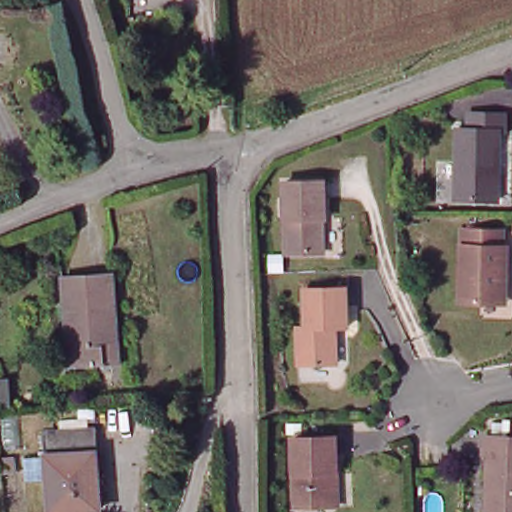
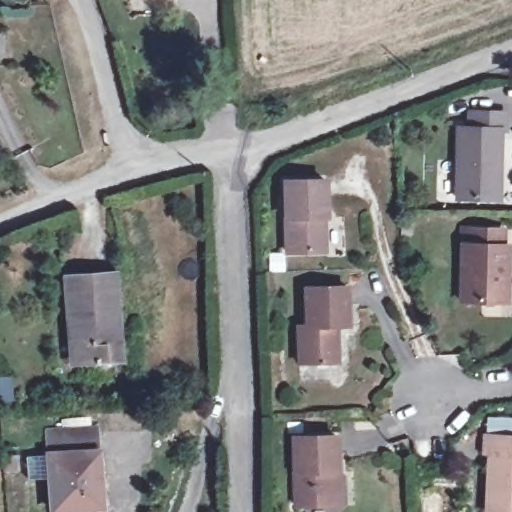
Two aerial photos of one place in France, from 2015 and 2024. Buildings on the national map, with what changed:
unchanged [(162,0),(162,7),(119,6),(119,0),(162,0)]
unchanged [(489,200),(455,199),(458,131),(468,131),(470,112),(505,114),(506,133),(500,133),(499,167),(497,201),(489,200)]
unchanged [(327,215),(322,214),(323,248),(285,247),(286,177),(327,178),(327,215)]
unchanged [(500,298),(462,296),(465,243),(471,243),(471,225),(503,227),(504,243),(510,243),(510,269),(509,299),(500,298)]
unchanged [(120,272),(125,357),(67,360),(62,275),(120,272)]
unchanged [(347,286),(347,325),(335,325),(335,360),(295,360),(295,323),(306,323),(307,284),(347,286)]
unchanged [(103,433),(105,485),(112,486),(112,506),(106,507),(106,512),(55,512),(55,482),(34,483),(34,433),(103,433)]
unchanged [(336,500),(297,500),(296,433),(343,433),(344,467),(344,499),(336,500)]
unchanged [(512,512),(506,512),(482,510),(483,454),(477,453),(478,435),(512,437),(512,512)]

